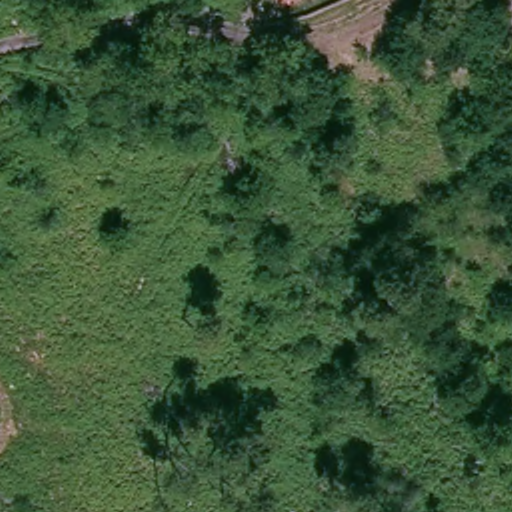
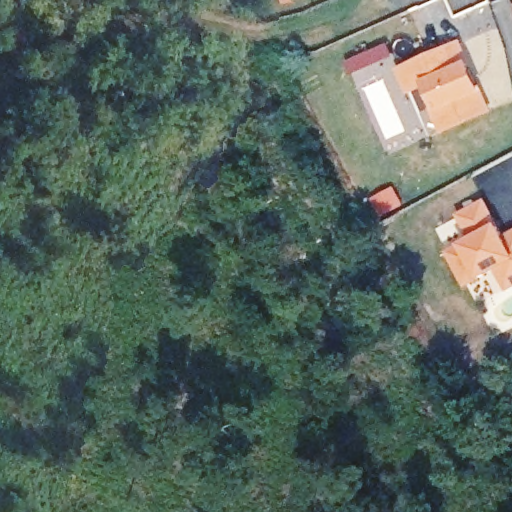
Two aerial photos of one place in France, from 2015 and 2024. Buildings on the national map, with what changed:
new [(443,134),(431,108),(435,107),(428,87),(411,95),(398,68),(461,40),(471,62),(483,91),(493,111),(443,134)]
new [(447,251),(472,238),(459,214),(486,201),(505,235),(512,232),(512,289),(509,290),(497,271),(482,280),(467,287),(447,251)]

